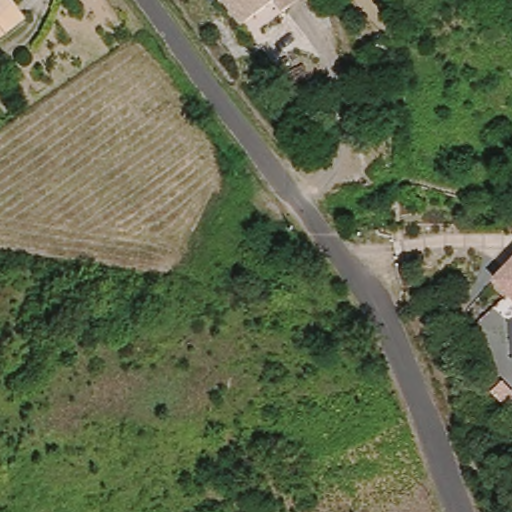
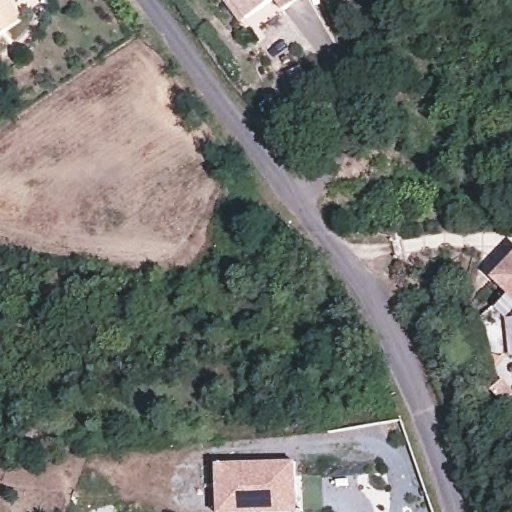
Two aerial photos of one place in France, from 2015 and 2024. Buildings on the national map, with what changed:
unchanged [(23,17),(0,35),(0,0),(10,0),(23,17)]
unchanged [(244,22),(228,0),(270,0),(244,22)]
unchanged [(284,5),(277,0),(293,0),(284,5)]
unchanged [(310,149),(301,156),(293,146),(301,139),(310,149)]
unchanged [(512,259),(512,293),(496,276),(512,259)]
new [(304,474),(305,512),(218,512),(216,464),(296,461),(297,472),(304,474)]

